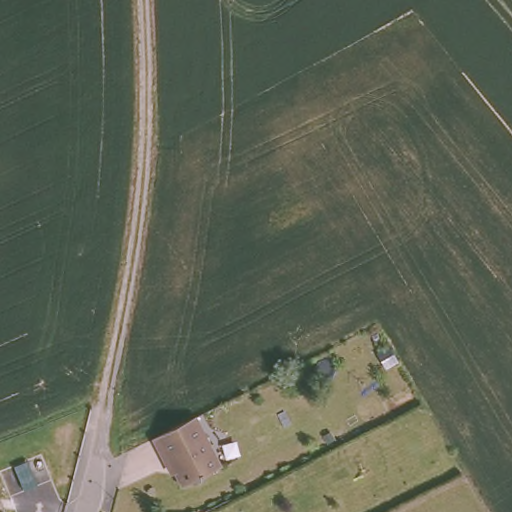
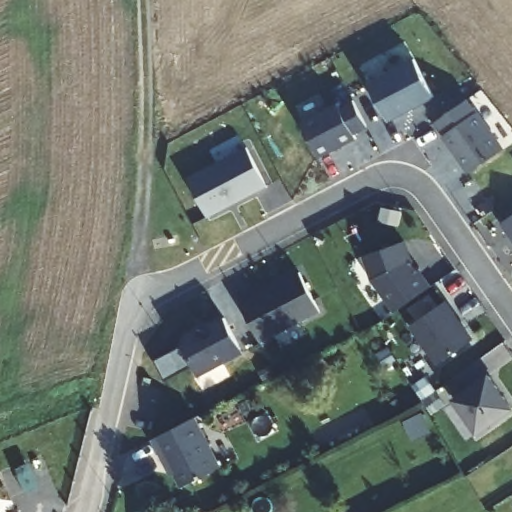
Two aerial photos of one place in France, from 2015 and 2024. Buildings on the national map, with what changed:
new [(417,61),(437,98),(415,110),(414,109),(403,114),(404,115),(390,122),(370,85),(417,61)]
new [(504,149),(471,173),(435,124),(469,99),(504,149)]
new [(340,103),(342,107),(356,100),(370,128),(357,135),(359,139),(322,158),(303,122),(340,103)]
new [(249,147),(268,185),(209,216),(190,178),(249,147)]
new [(512,237),(503,225),(512,219),(512,237)]
new [(407,242),(413,261),(432,288),(397,313),(375,281),(366,257),(407,242)]
new [(301,274),(321,312),(261,343),(242,304),(301,274)]
new [(447,303),(455,315),(454,315),(461,325),(462,325),(474,342),(440,366),(412,327),(447,303)]
new [(200,328),(200,329),(210,325),(225,317),(243,351),(198,374),(182,342),(184,336),(200,328)]
new [(512,408),(512,410),(478,434),(456,401),(490,377),(512,408)]
unchanged [(193,425),(217,474),(179,494),(166,470),(163,471),(150,446),(193,425)]

